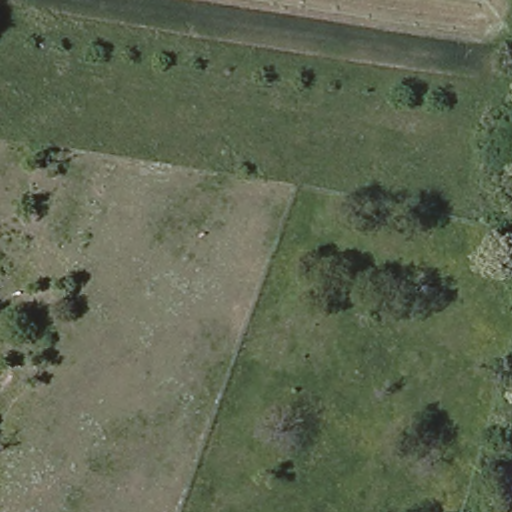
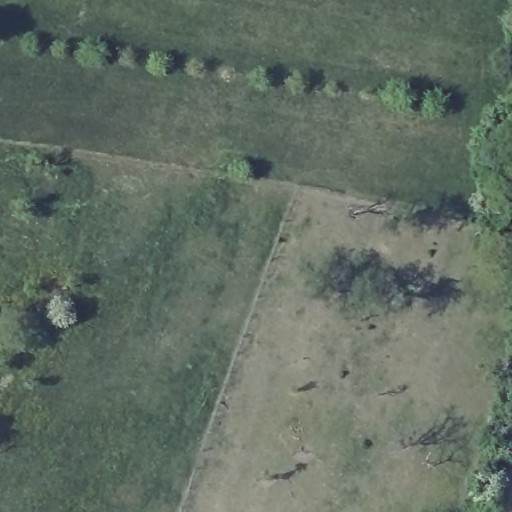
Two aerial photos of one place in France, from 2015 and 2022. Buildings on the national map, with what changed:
[]

